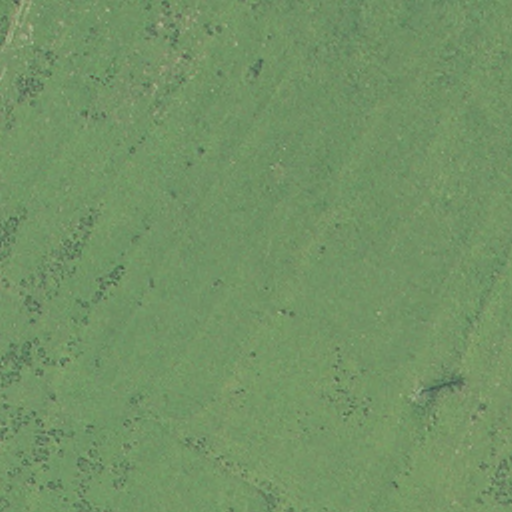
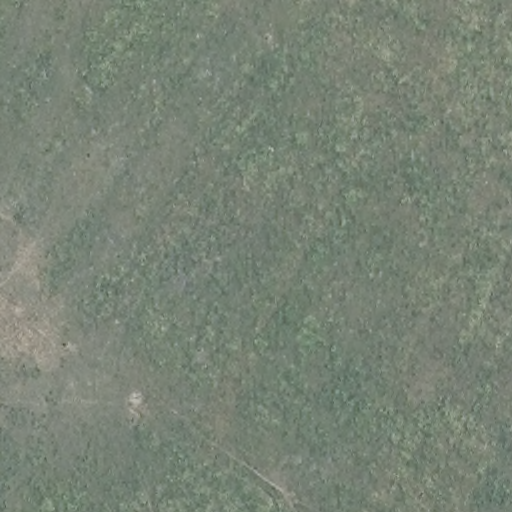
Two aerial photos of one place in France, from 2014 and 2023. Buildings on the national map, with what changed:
[]

